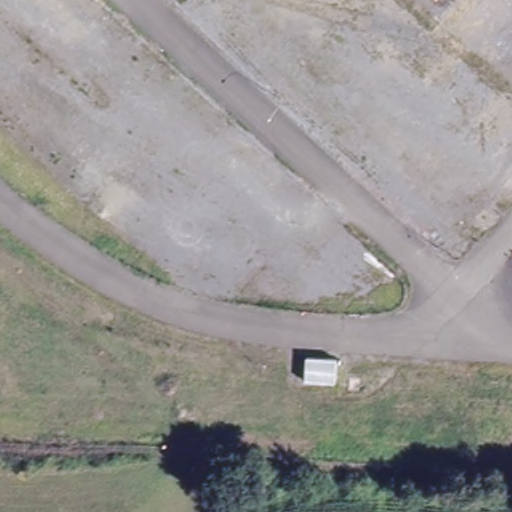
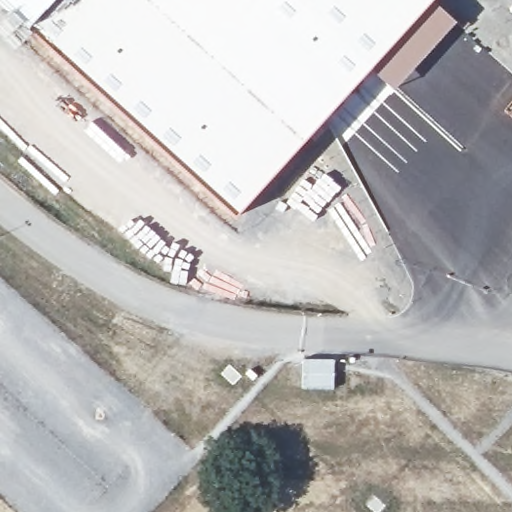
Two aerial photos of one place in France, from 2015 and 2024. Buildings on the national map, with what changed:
new [(0,0),(432,0),(233,217),(26,27),(0,3),(0,0)]
unchanged [(298,361),(335,361),(336,387),(300,387),(298,361)]

